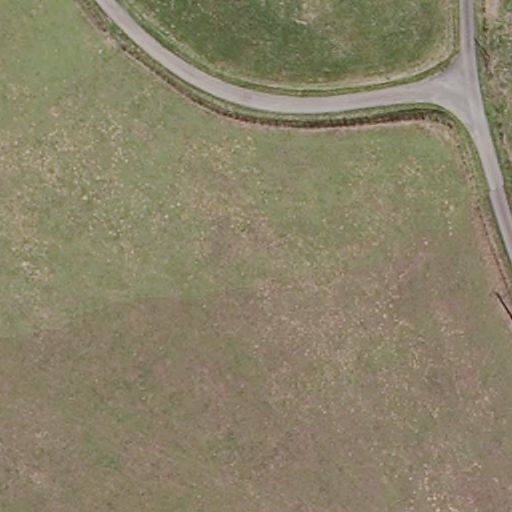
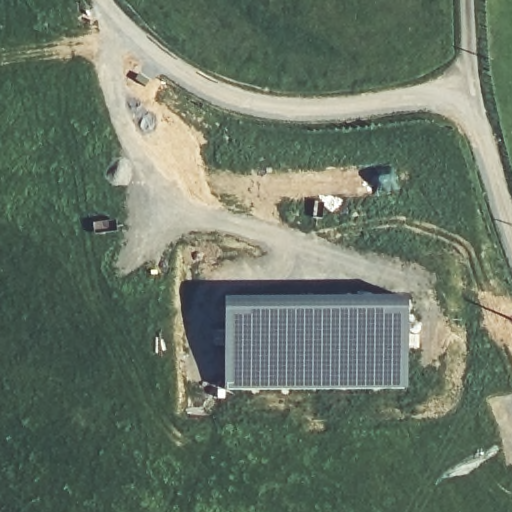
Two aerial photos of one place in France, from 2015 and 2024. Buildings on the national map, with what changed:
new [(224,390),(224,300),(406,301),(407,389),(224,390)]

